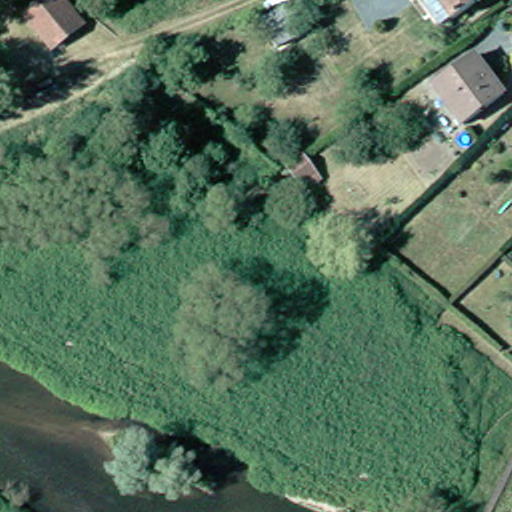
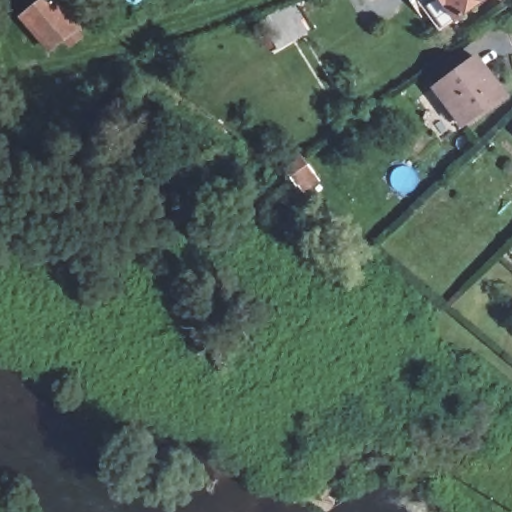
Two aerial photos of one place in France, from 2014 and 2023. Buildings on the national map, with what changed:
unchanged [(460,20),(447,30),(445,31),(422,0),(486,0),(460,20)]
unchanged [(24,21),(45,2),(70,32),(49,51),(24,21)]
unchanged [(475,57),(504,95),(464,127),(462,125),(465,122),(450,101),(447,104),(435,88),(475,57)]

